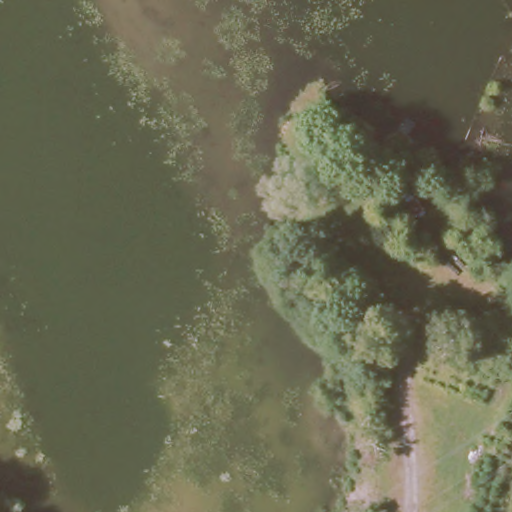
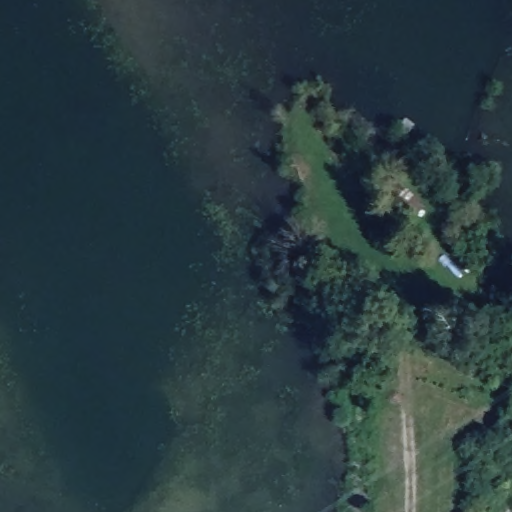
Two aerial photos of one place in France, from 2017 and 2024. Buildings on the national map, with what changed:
unchanged [(390,198),(403,184),(424,205),(412,223),(390,198)]

